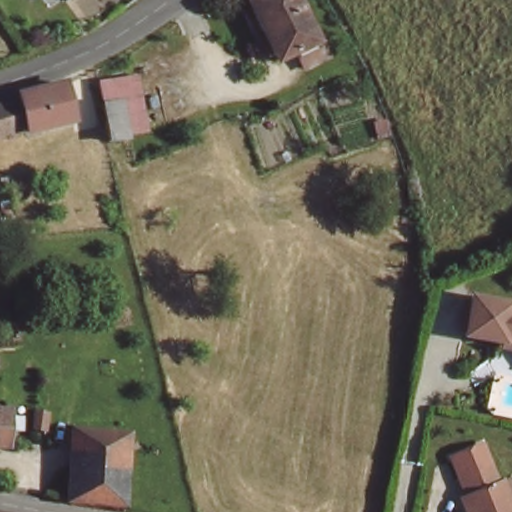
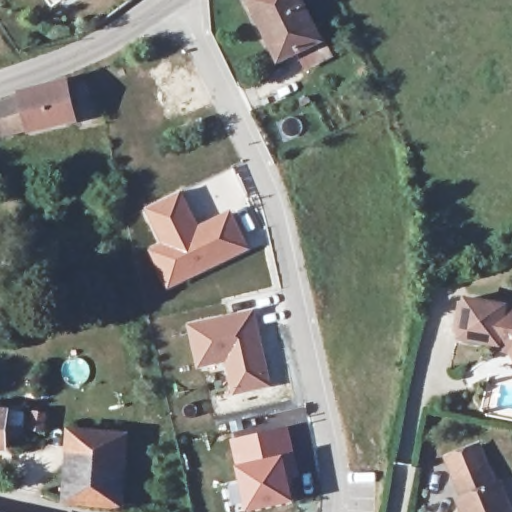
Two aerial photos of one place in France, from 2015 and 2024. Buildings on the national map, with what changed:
new [(44,0),(62,0),(51,9),(44,0)]
unchanged [(68,0),(72,0),(70,2),(68,0)]
unchanged [(251,0),(304,0),(323,33),(284,55),(251,0)]
demolished [(101,81),(141,72),(154,129),(113,141),(101,81)]
unchanged [(75,77),(82,121),(0,138),(0,102),(20,94),(75,77)]
new [(169,288),(149,251),(163,244),(145,209),(182,190),(200,227),(231,210),(251,250),(169,288)]
unchanged [(468,300),(512,305),(512,353),(463,342),(468,300)]
new [(271,387),(233,395),(225,363),(198,367),(187,324),(254,310),(271,387)]
unchanged [(28,423),(29,412),(45,413),(45,424),(44,426),(28,423)]
new [(239,480),(230,437),(289,424),(295,452),(287,455),(296,501),(246,512),(244,503),(232,506),(227,482),(239,480)]
unchanged [(68,497),(73,430),(133,437),(127,505),(68,497)]
unchanged [(462,505),(467,502),(452,463),(485,452),(500,492),(505,489),(512,507),(512,512),(465,512),(462,505)]

